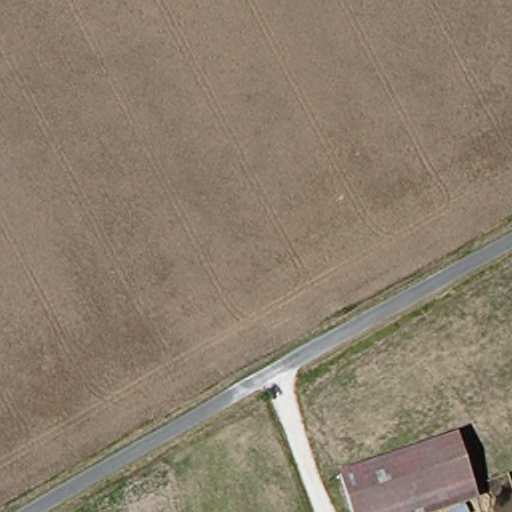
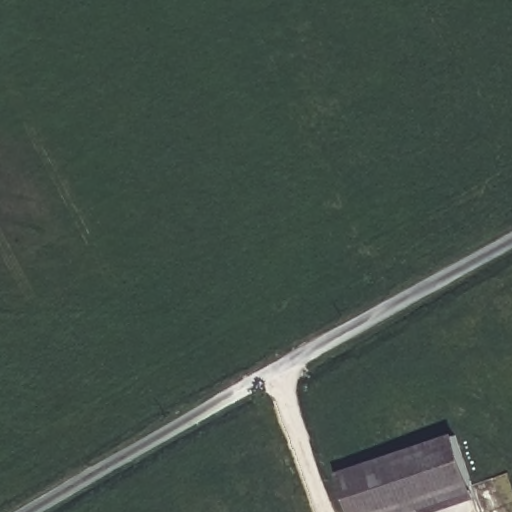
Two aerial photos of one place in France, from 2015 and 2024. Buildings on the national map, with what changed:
unchanged [(478,501),(448,512),(343,512),(331,481),(454,438),(478,501)]

